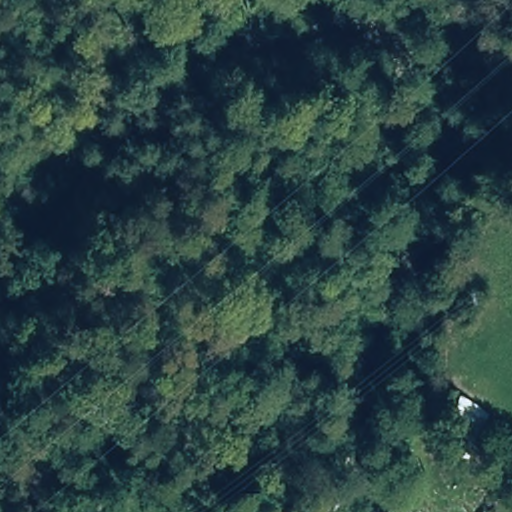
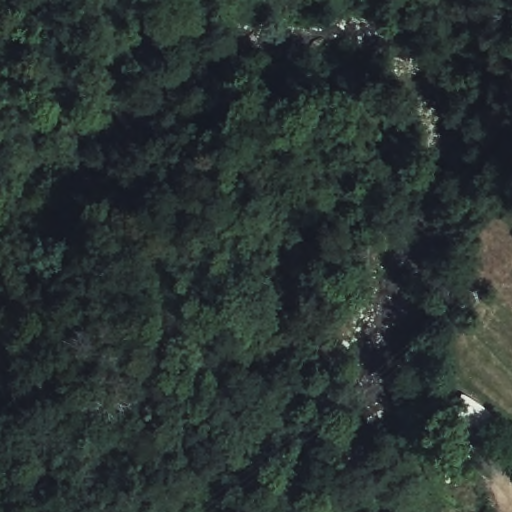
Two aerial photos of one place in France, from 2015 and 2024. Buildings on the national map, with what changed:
unchanged [(464,402),(488,407),(481,446),(458,442),(464,402)]

